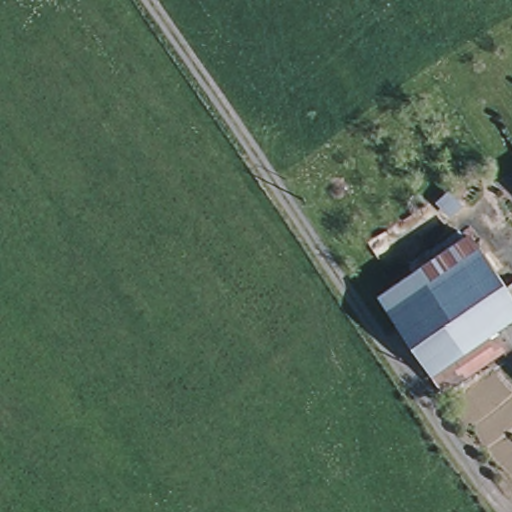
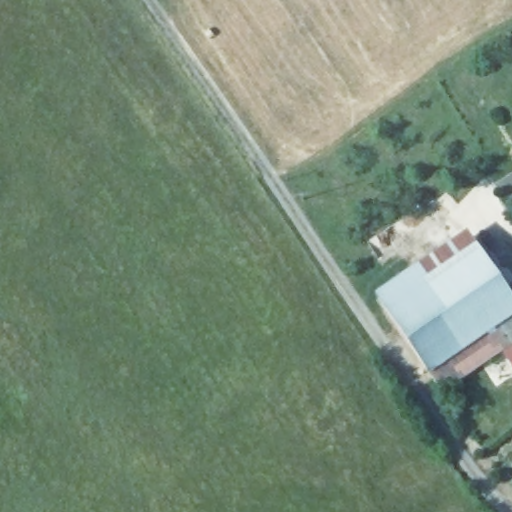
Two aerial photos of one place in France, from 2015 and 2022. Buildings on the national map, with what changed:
unchanged [(444,191),(458,205),(450,213),(436,199),(444,191)]
unchanged [(375,295),(467,232),(500,280),(510,273),(512,275),(512,292),(510,294),(512,297),(512,302),(423,364),(375,295)]
unchanged [(512,302),(512,340),(509,335),(437,385),(423,364),(512,302)]

